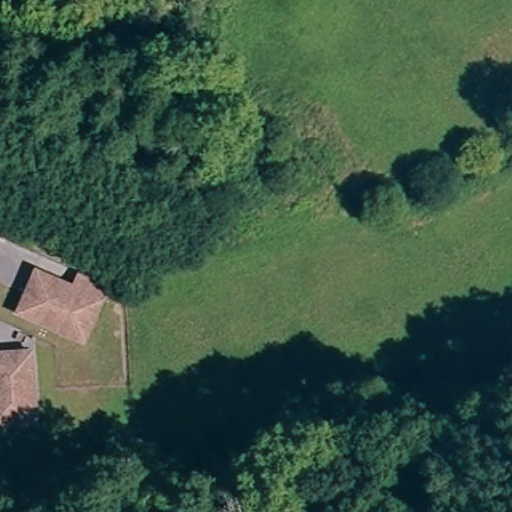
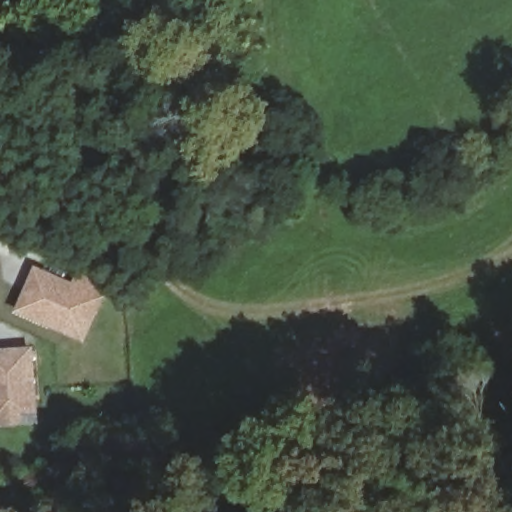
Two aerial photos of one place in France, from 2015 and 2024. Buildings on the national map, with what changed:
unchanged [(47,327),(20,313),(40,272),(77,290),(83,276),(111,289),(104,304),(85,343),(47,327)]
unchanged [(0,424),(0,352),(33,350),(35,381),(36,422),(0,424)]

